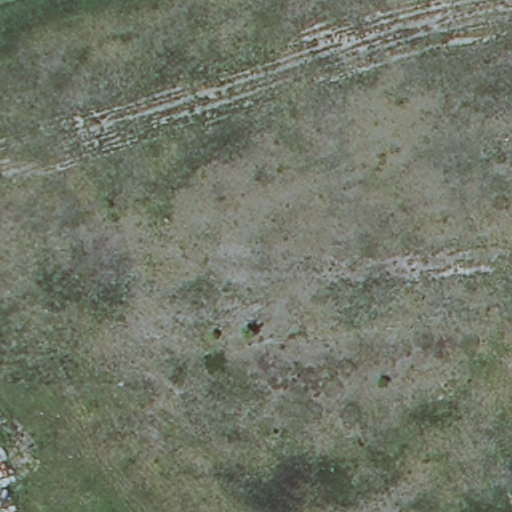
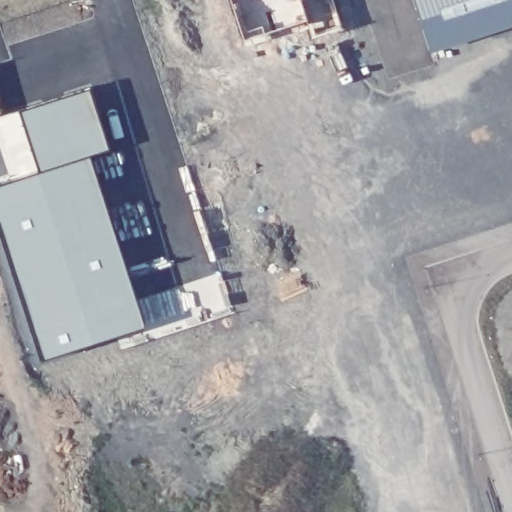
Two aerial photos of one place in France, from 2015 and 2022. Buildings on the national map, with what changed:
new [(342,30),(311,39),(306,21),(244,43),(231,0),(333,0),(342,30)]
new [(512,22),(430,48),(414,0),(512,0),(512,22)]
new [(88,88),(109,153),(88,158),(145,330),(43,363),(0,229),(0,186),(41,173),(19,111),(88,88)]
new [(2,116),(0,117),(0,110),(2,116)]

